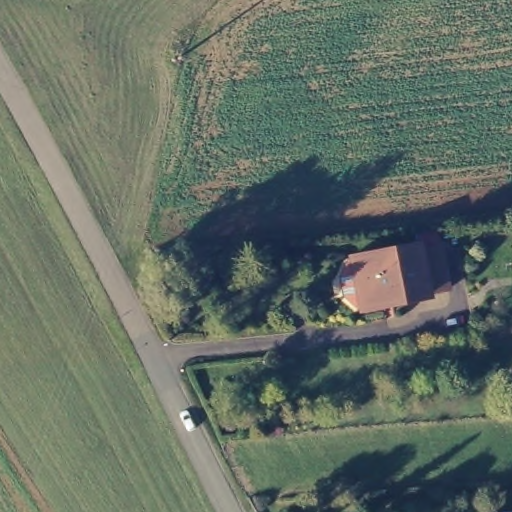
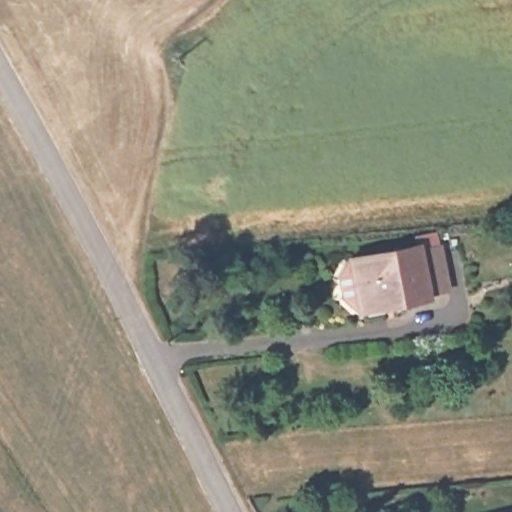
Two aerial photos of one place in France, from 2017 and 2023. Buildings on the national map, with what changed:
unchanged [(356,307),(347,262),(418,244),(420,247),(442,242),(450,281),(431,286),(356,307)]

